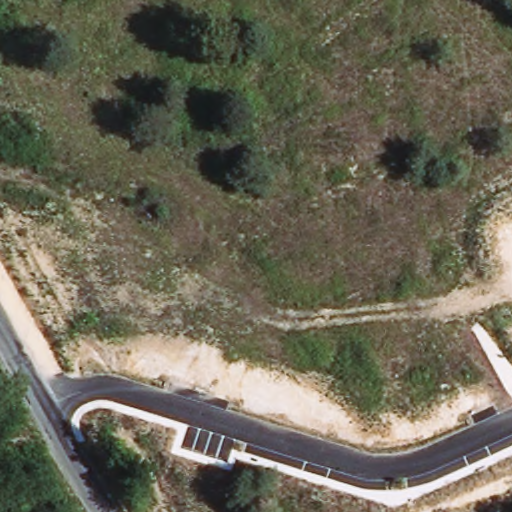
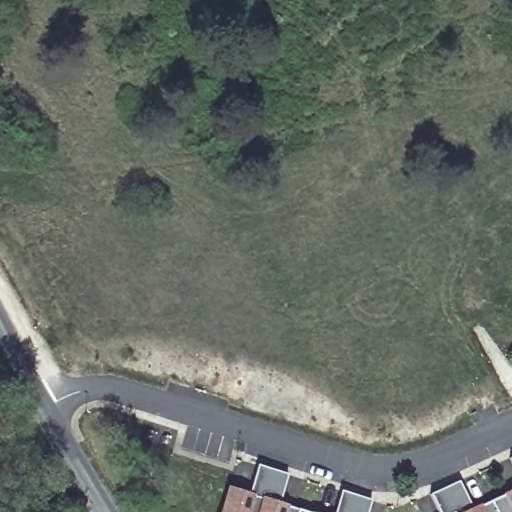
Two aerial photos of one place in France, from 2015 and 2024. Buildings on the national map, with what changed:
new [(512,457),(512,465),(509,458),(512,457)]
new [(248,493),(256,466),(286,475),(276,502),(307,512),(218,512),(225,487),(248,493)]
new [(457,481),(470,508),(512,490),(512,512),(436,512),(430,494),(457,481)]
new [(370,501),(367,512),(333,512),(339,491),(370,501)]

